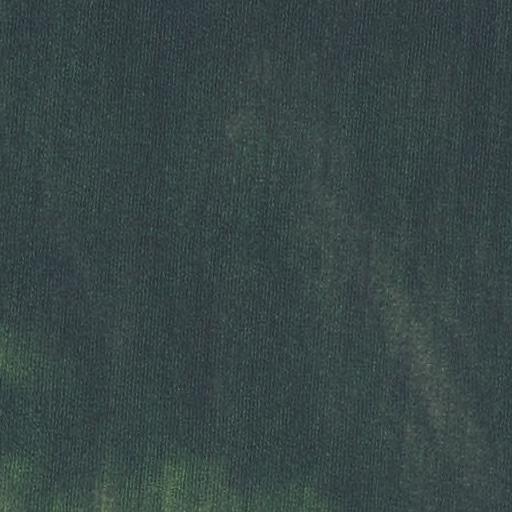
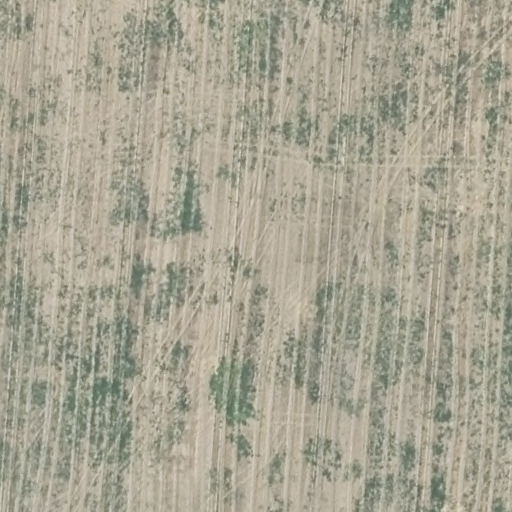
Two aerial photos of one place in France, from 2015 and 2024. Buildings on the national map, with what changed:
[]

